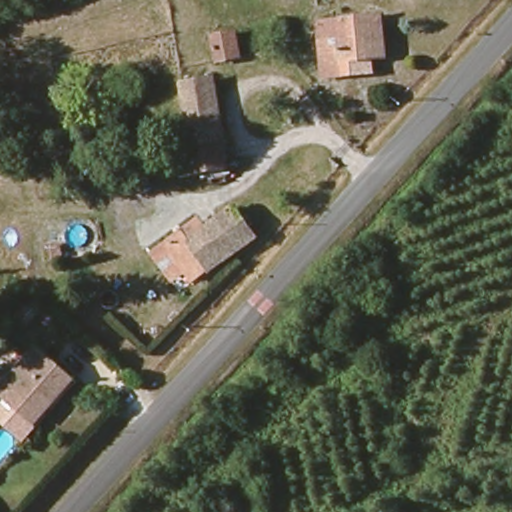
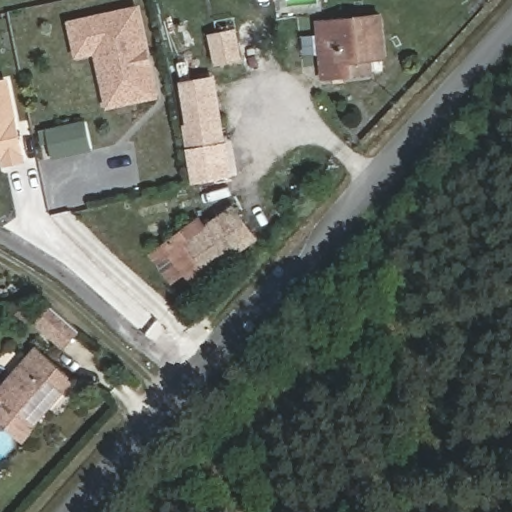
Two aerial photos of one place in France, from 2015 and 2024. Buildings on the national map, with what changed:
new [(75,59),(66,20),(139,4),(160,98),(106,110),(94,55),(75,59)]
unchanged [(325,79),(326,61),(326,24),(387,25),(386,62),(372,62),(372,80),(325,79)]
unchanged [(240,54),(213,57),(211,40),(238,37),(240,54)]
unchanged [(191,174),(189,154),(184,66),(208,64),(209,78),(217,77),(222,151),(223,171),(191,174)]
new [(7,80),(24,159),(6,163),(5,155),(0,156),(0,81),(7,80)]
new [(84,122),(90,150),(63,156),(53,158),(48,129),(57,128),(84,122)]
unchanged [(207,226),(237,204),(262,241),(212,277),(188,240),(207,226)]
unchanged [(188,240),(212,277),(190,290),(159,241),(200,216),(207,226),(188,240)]
new [(50,306),(78,329),(64,345),(37,321),(50,306)]
unchanged [(39,427),(8,403),(0,413),(0,396),(1,397),(39,349),(78,379),(39,427)]

